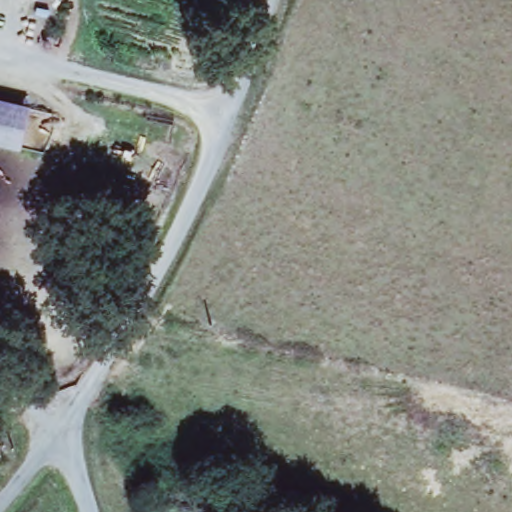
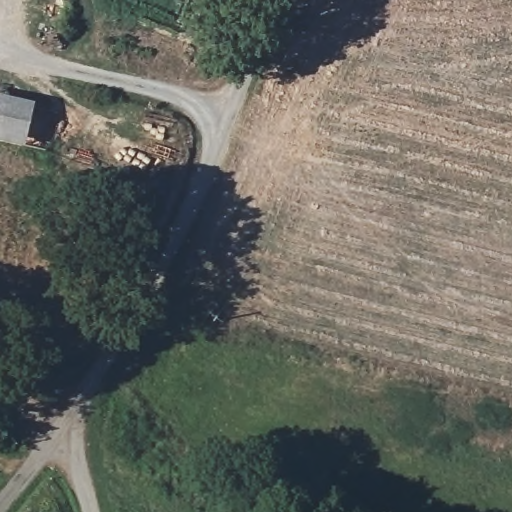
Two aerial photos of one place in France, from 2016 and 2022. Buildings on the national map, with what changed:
unchanged [(41,106),(33,146),(0,142),(0,95),(41,106)]

